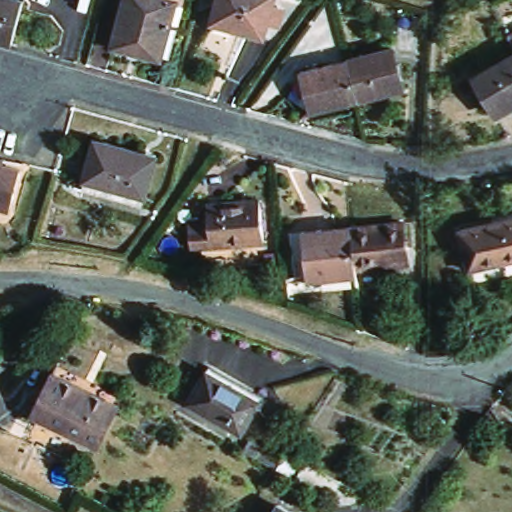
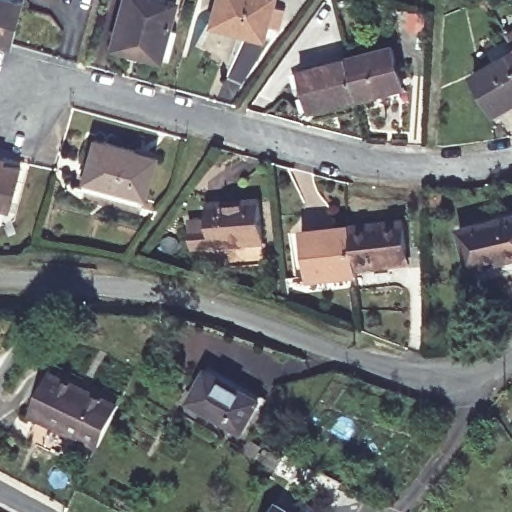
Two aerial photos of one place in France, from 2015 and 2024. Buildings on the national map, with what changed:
unchanged [(0,0),(8,0),(25,5),(14,48),(0,44),(0,0)]
unchanged [(157,66),(110,54),(125,0),(155,0),(177,6),(157,66)]
unchanged [(277,33),(264,30),(259,42),(210,29),(218,0),(272,0),(269,10),(272,11),(283,13),(277,33)]
unchanged [(394,51),(406,89),(360,104),(348,65),(394,51)]
unchanged [(496,123),(474,80),(512,59),(512,114),(496,123)]
unchanged [(315,118),(303,78),(348,65),(360,104),(315,118)]
unchanged [(140,209),(81,191),(93,140),(154,158),(140,209)]
unchanged [(6,214),(0,212),(0,164),(21,170),(6,214)]
unchanged [(264,246),(192,250),(189,222),(213,221),(213,208),(262,207),(264,246)]
unchanged [(470,278),(462,234),(512,223),(512,269),(470,278)]
unchanged [(401,226),(407,270),(355,276),(351,231),(401,226)]
unchanged [(355,276),(355,280),(307,284),(300,235),(351,231),(355,276)]
unchanged [(242,440),(188,411),(209,377),(262,407),(242,440)]
unchanged [(37,421),(58,378),(123,410),(103,453),(37,421)]
unchanged [(344,480),(335,497),(244,452),(250,438),(344,480)]
unchanged [(287,512),(273,512),(275,506),(287,512)]

